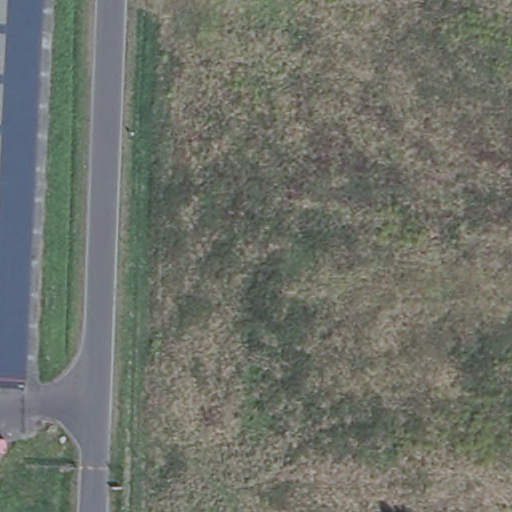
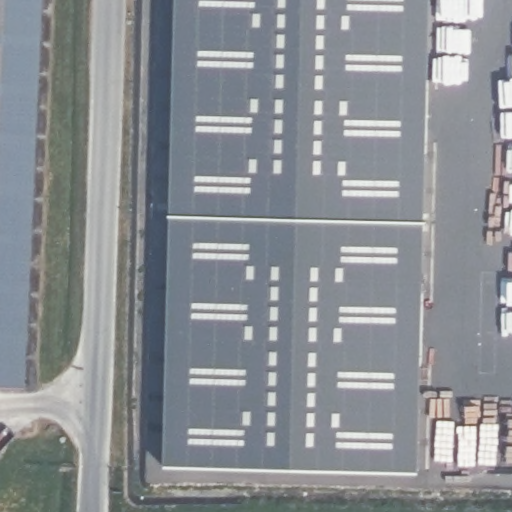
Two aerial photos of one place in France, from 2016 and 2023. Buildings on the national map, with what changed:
unchanged [(24,392),(0,391),(0,0),(41,0),(24,392)]
new [(423,482),(167,474),(179,0),(434,0),(423,482)]

